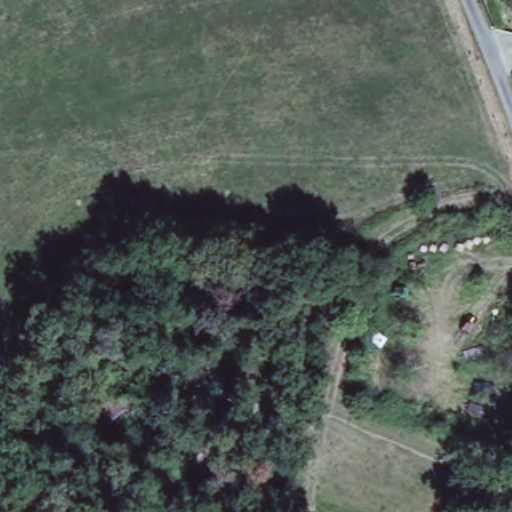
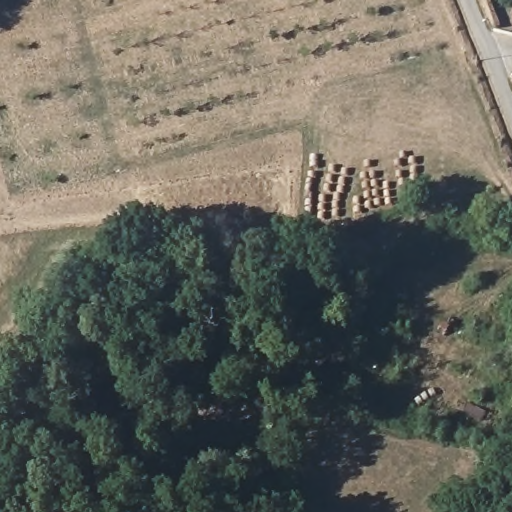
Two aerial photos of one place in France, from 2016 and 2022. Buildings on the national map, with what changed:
unchanged [(122,320),(150,288),(164,297),(135,328),(122,320)]

